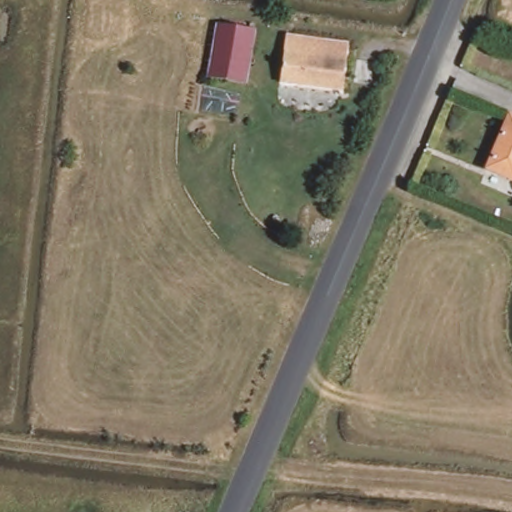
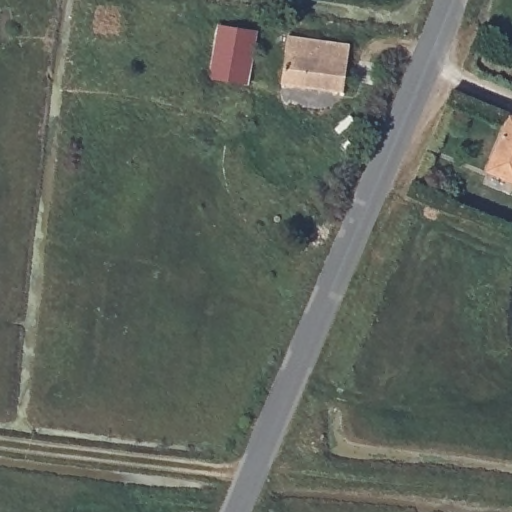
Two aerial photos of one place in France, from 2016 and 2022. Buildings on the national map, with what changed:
unchanged [(250,31),(243,84),(231,82),(206,79),(212,24),(250,31)]
unchanged [(343,94),(280,86),(286,34),(349,42),(343,94)]
unchanged [(501,181),(483,173),(508,116),(512,118),(512,183),(511,185),(501,181)]

